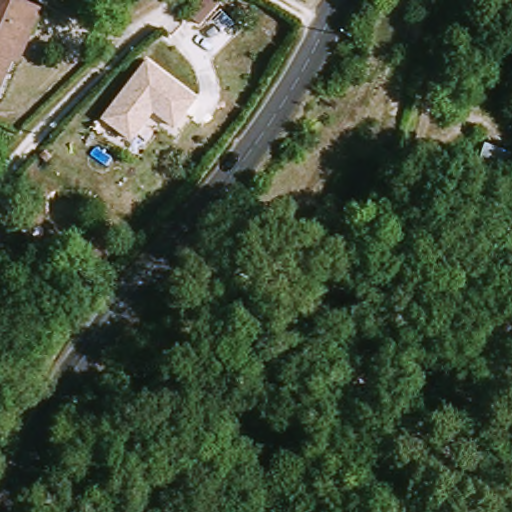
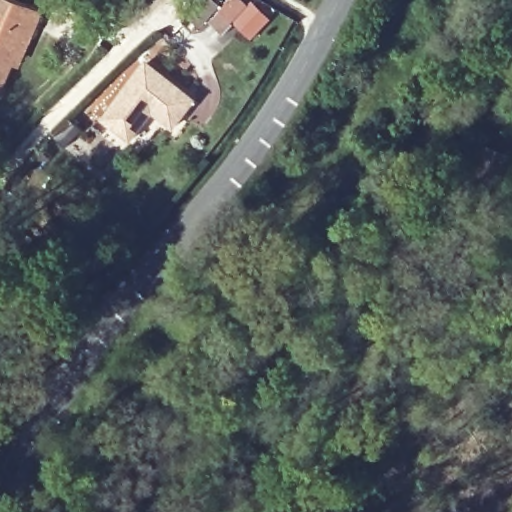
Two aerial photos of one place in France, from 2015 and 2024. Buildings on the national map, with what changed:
unchanged [(2,97),(0,96),(0,0),(17,0),(19,1),(48,11),(45,20),(38,36),(26,65),(18,61),(2,97)]
new [(211,21),(234,0),(243,0),(249,6),(253,1),(272,19),(252,39),(235,22),(223,33),(211,21)]
unchanged [(429,24),(425,52),(399,41),(408,16),(429,24)]
unchanged [(100,117),(109,107),(138,74),(147,64),(193,104),(187,111),(170,130),(150,112),(134,130),(125,140),(100,117)]

